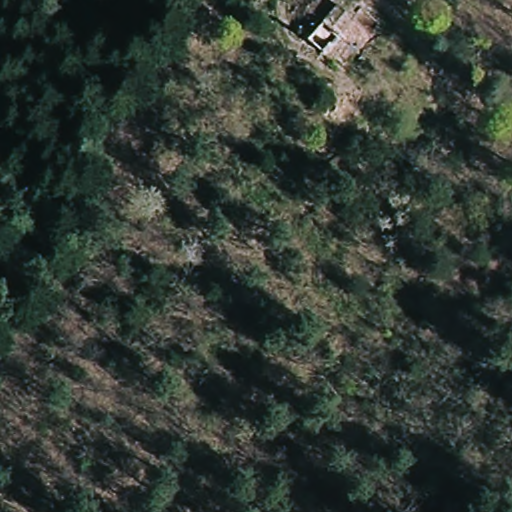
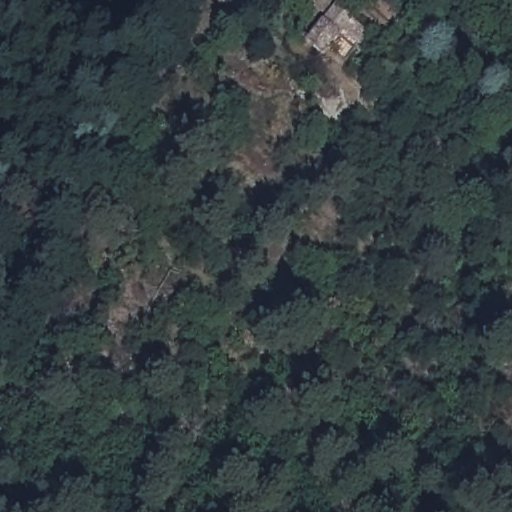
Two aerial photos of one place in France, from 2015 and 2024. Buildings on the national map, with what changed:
unchanged [(341,50),(328,42),(320,48),(303,22),(303,14),(307,7),(318,0),(335,0),(337,4),(359,24),(346,43),(341,50)]

